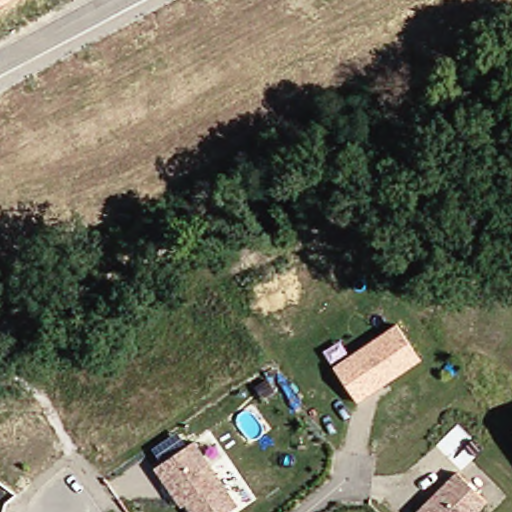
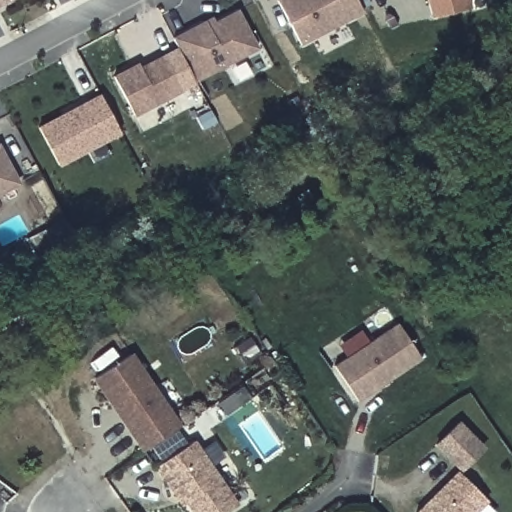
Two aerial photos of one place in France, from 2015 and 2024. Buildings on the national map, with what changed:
unchanged [(10,0),(0,5),(0,0),(10,0)]
new [(301,44),(279,1),(280,0),(358,0),(363,12),(301,44)]
new [(467,0),(470,9),(432,18),(428,0),(467,0)]
new [(195,82),(175,39),(214,17),(216,22),(239,9),(259,49),(195,82)]
new [(144,64),(145,68),(166,57),(184,91),(135,117),(115,78),(140,66),(144,64)]
new [(102,97),(121,134),(60,167),(40,129),(102,97)]
new [(0,194),(0,145),(20,184),(0,194)]
unchanged [(335,368),(334,367),(396,325),(400,328),(421,360),(358,402),(335,368)]
unchanged [(132,354),(180,424),(143,451),(94,381),(132,354)]
new [(463,468),(450,456),(438,442),(460,421),(472,433),(485,446),(463,468)]
unchanged [(165,477),(156,462),(194,437),(239,503),(227,512),(193,512),(185,501),(182,503),(165,477)]
unchanged [(459,473),(489,500),(478,512),(421,512),(459,473)]

